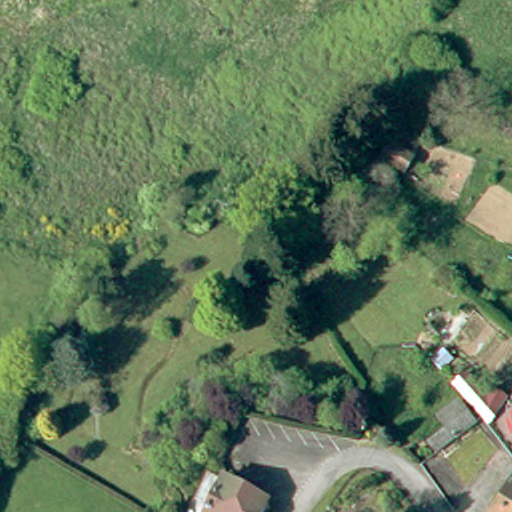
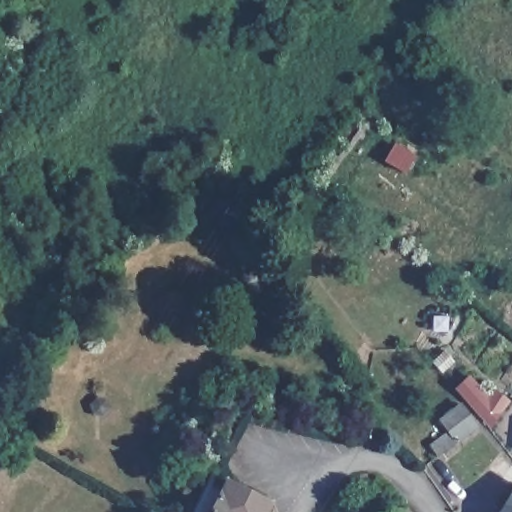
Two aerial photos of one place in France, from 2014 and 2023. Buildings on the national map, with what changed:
unchanged [(403,174),(385,163),(395,146),(413,158),(403,174)]
unchanged [(303,215),(296,206),(309,196),(316,205),(303,215)]
unchanged [(492,395),(509,404),(490,430),(483,423),(455,390),(468,378),(485,397),(489,400),(492,395)]
unchanged [(474,429),(438,454),(432,445),(449,432),(440,420),(458,406),(474,429)]
unchanged [(278,512),(221,512),(233,487),(280,508),(278,512)]

